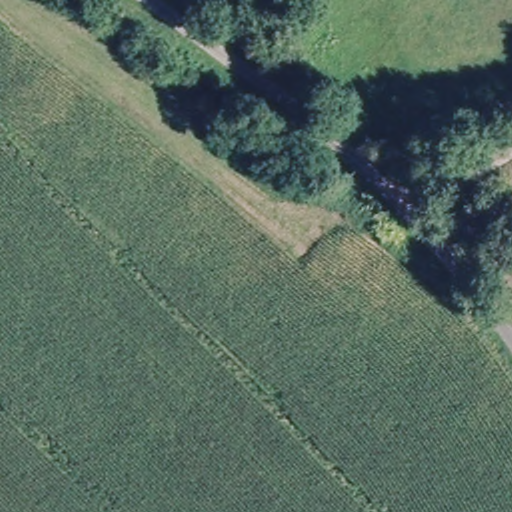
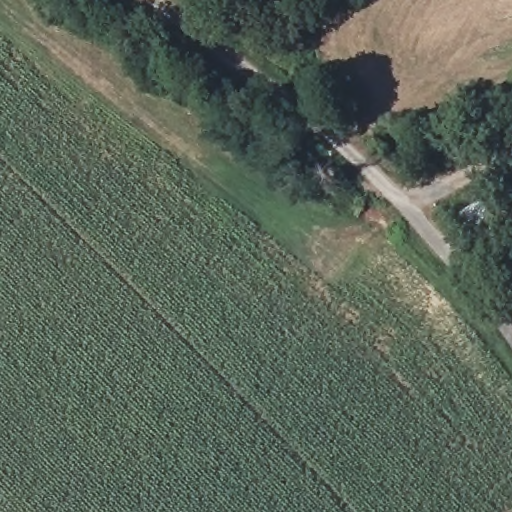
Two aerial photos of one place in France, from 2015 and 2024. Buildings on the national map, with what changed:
unchanged [(473,238),(456,211),(486,196),(498,219),(473,238)]

